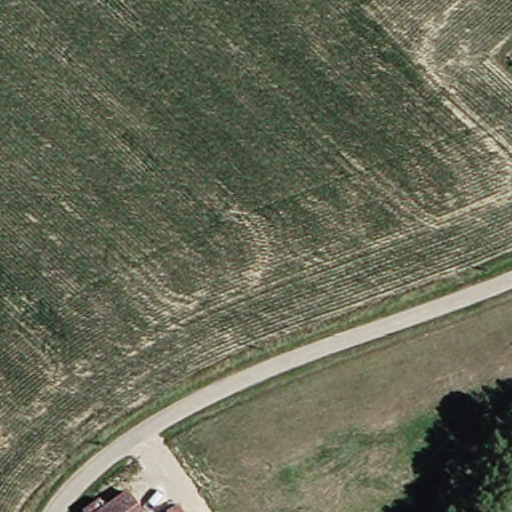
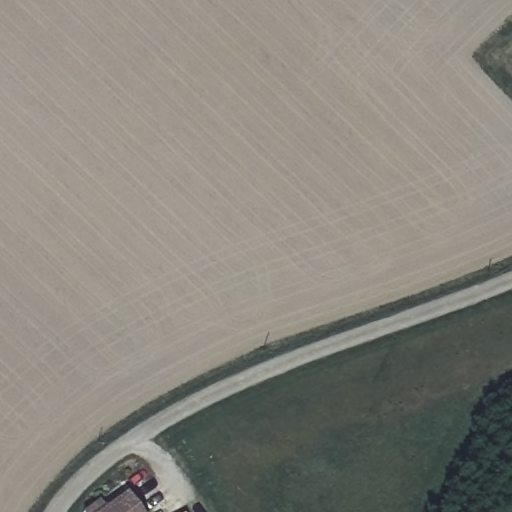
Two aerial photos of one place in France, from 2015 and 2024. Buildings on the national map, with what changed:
unchanged [(121,497),(131,512),(98,512),(121,497)]
unchanged [(175,505),(179,512),(163,512),(175,505)]

